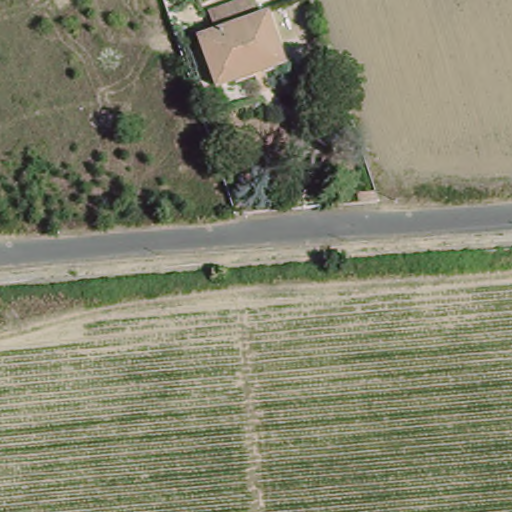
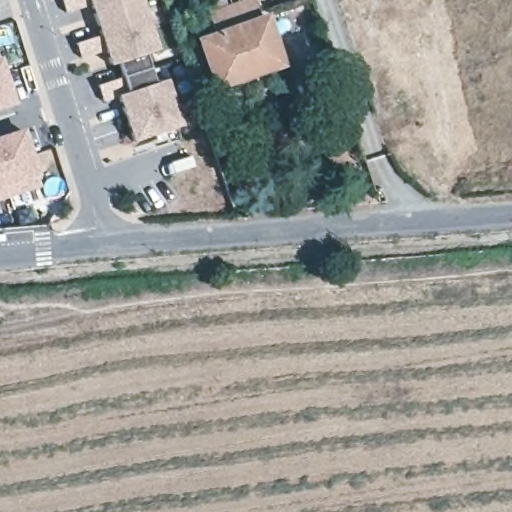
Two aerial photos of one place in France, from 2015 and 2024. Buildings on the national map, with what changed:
new [(160,53),(147,57),(157,87),(168,83),(184,129),(185,130),(136,146),(120,101),(105,107),(100,90),(125,82),(120,67),(112,70),(107,55),(82,63),(77,49),(102,40),(92,10),(67,18),(62,3),(72,0),(141,0),(160,53)]
unchanged [(283,68),(217,91),(200,42),(216,37),(210,18),(254,3),(260,21),(267,20),(283,68)]
new [(0,113),(0,63),(15,108),(0,113)]
new [(43,191),(0,205),(0,145),(25,137),(43,191)]

